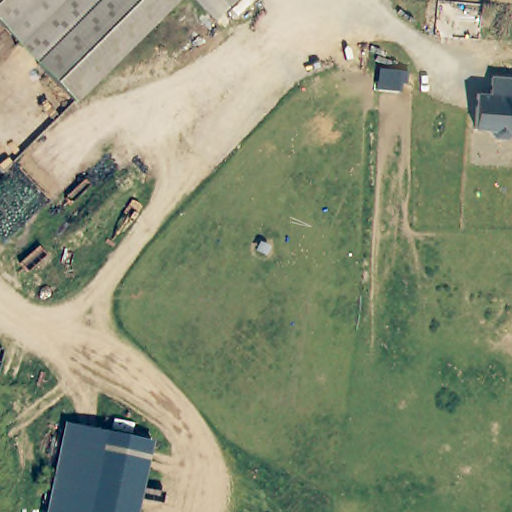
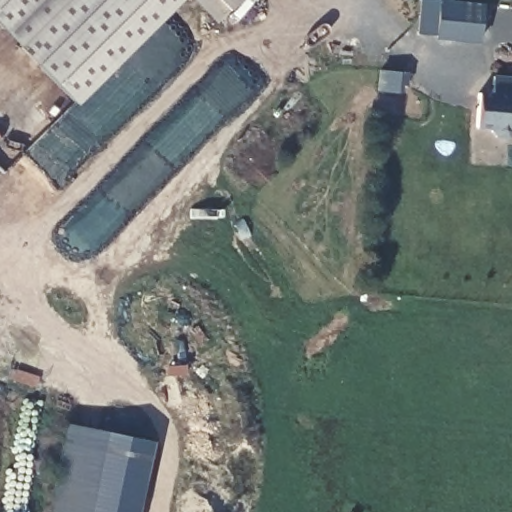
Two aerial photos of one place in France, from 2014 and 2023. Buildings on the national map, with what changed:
unchanged [(0,31),(0,0),(182,0),(98,84),(75,106),(0,31)]
unchanged [(216,24),(192,0),(240,0),(216,24)]
new [(479,41),(434,37),(415,34),(418,0),(435,0),(439,0),(482,4),(479,41)]
unchanged [(490,97),(491,79),(512,81),(512,134),(511,133),(511,135),(506,140),(494,139),(489,134),(489,132),(473,130),(476,96),(490,97)]
unchanged [(154,442),(139,512),(47,512),(66,423),(154,442)]

